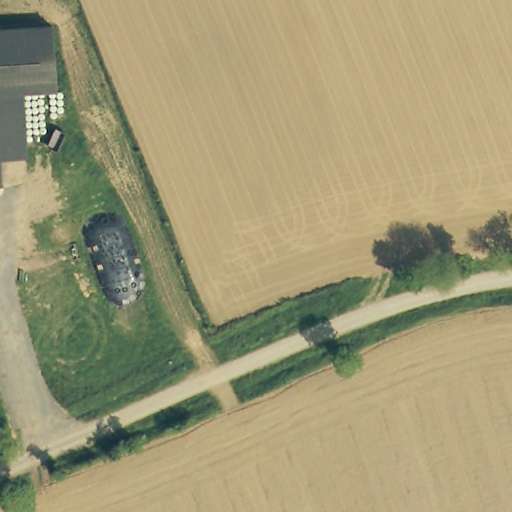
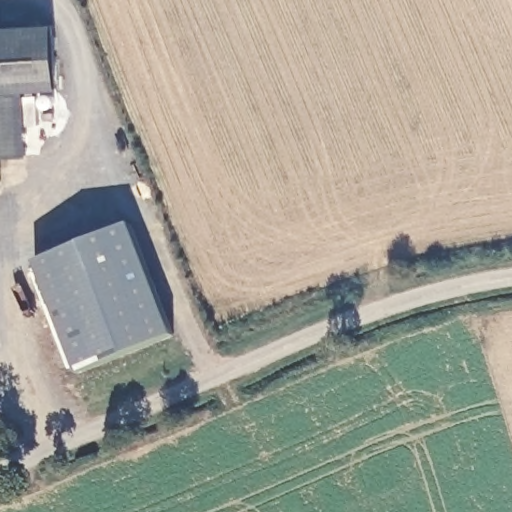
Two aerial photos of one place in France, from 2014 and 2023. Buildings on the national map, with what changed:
unchanged [(56,89),(26,91),(31,156),(4,158),(6,182),(0,182),(0,28),(51,25),(56,89)]
new [(131,224),(174,337),(78,375),(34,263),(131,224)]

